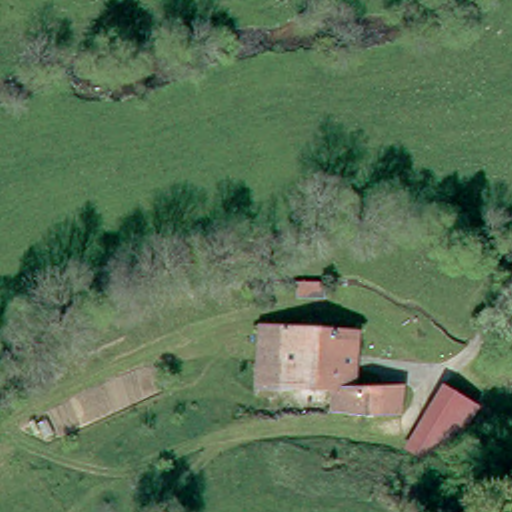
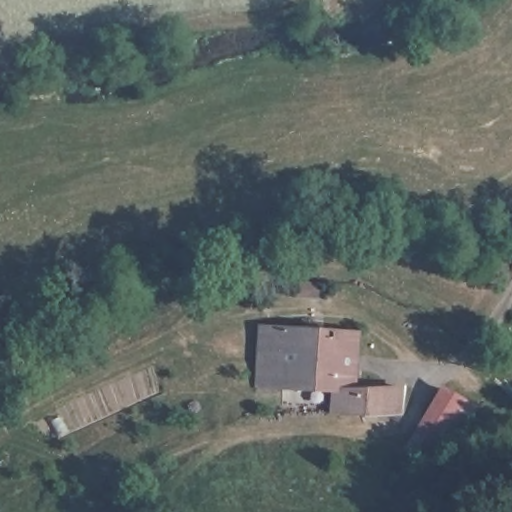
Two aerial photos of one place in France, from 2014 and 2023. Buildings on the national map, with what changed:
unchanged [(329,404),(328,388),(279,385),(256,384),(260,322),(357,328),(354,379),(352,406),(329,404)]
unchanged [(354,379),(398,382),(396,410),(352,406),(354,379)]
unchanged [(436,469),(409,452),(450,381),(475,399),(436,469)]

